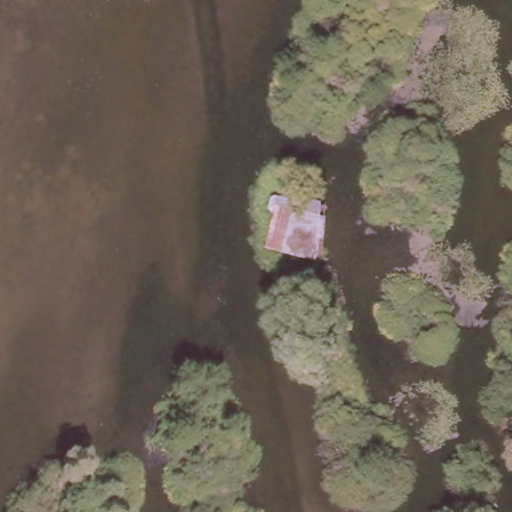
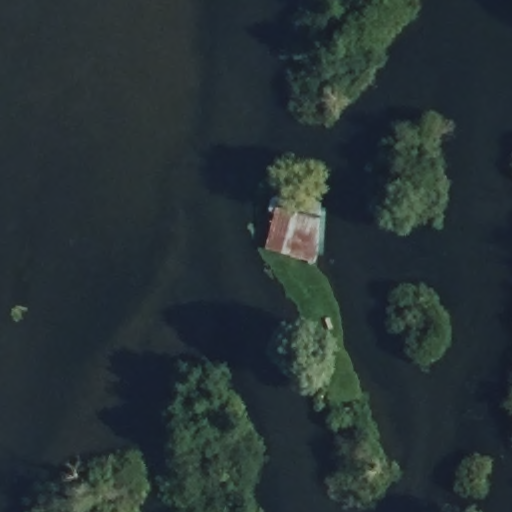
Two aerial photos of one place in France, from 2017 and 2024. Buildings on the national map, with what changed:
unchanged [(283,225),(271,225),(274,212),(261,211),(265,195),(317,201),(309,257),(279,252),(283,225)]

